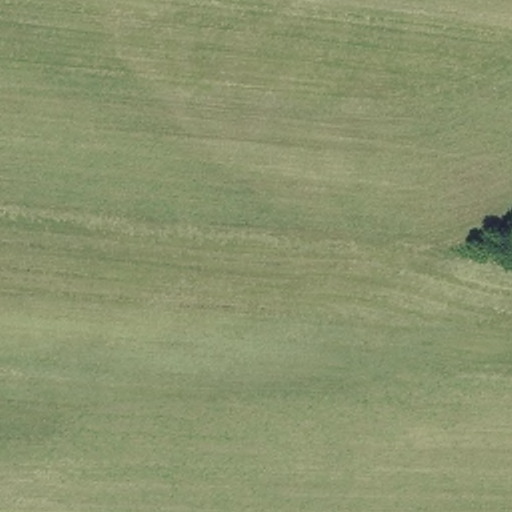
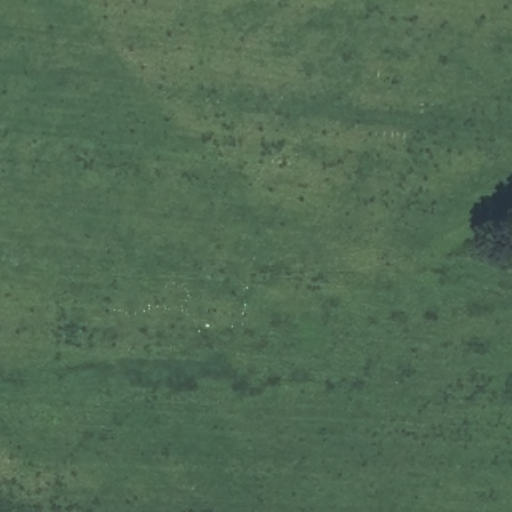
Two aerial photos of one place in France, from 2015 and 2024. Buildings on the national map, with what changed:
[]

